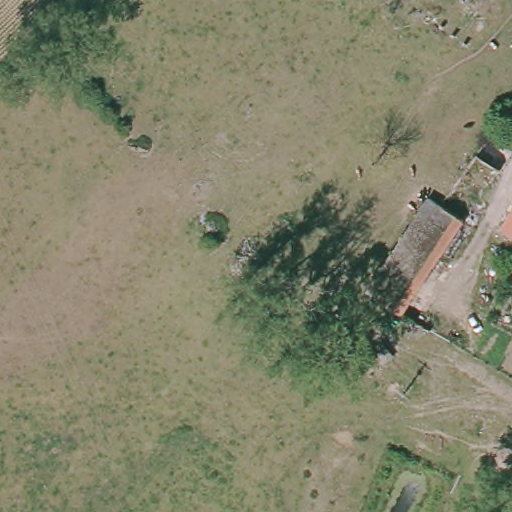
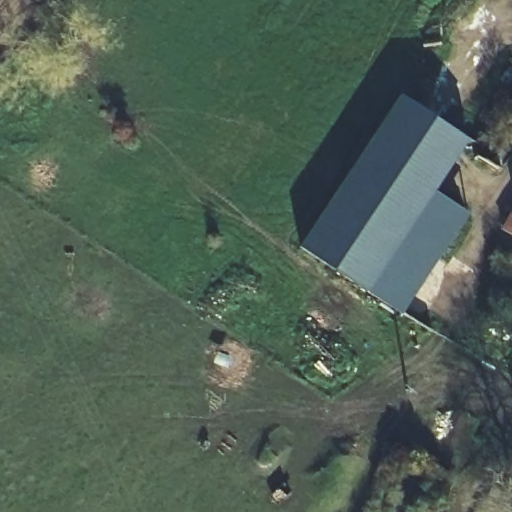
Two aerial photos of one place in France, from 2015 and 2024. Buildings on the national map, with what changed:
new [(399,94),(467,137),(433,189),(468,212),(402,314),(300,248),(399,94)]
demolished [(450,204),(482,155),(500,166),(405,318),(373,296),(438,196),(450,204)]
unchanged [(512,206),(512,236),(500,228),(512,206)]

